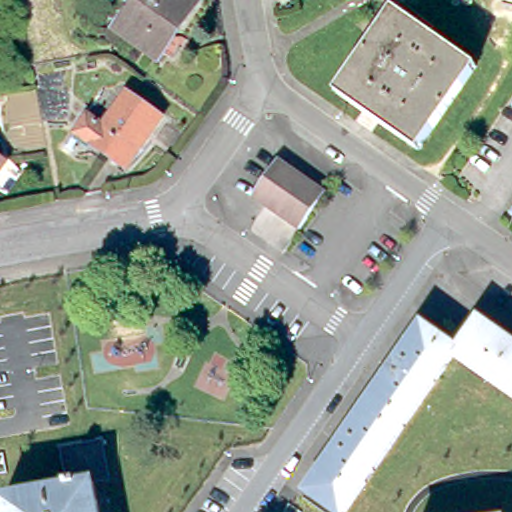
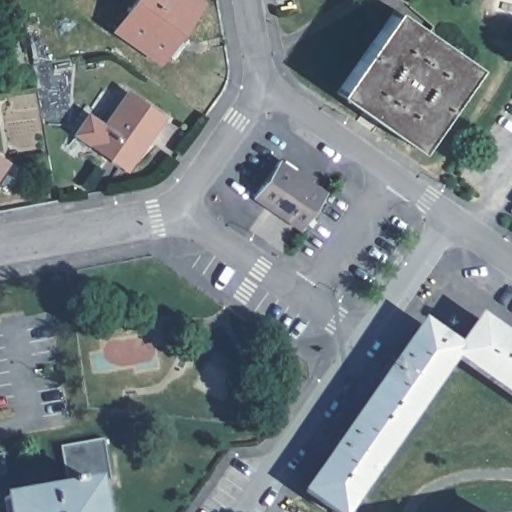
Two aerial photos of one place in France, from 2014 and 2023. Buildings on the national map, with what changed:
unchanged [(177,38),(166,54),(157,48),(155,53),(115,24),(131,0),(190,0),(168,32),(177,38)]
unchanged [(394,10),(478,67),(420,151),(337,93),(394,10)]
unchanged [(161,111),(125,164),(77,129),(88,111),(105,123),(128,89),(161,111)]
unchanged [(279,161),(326,193),(302,228),(255,198),(279,161)]
unchanged [(3,164),(0,169),(0,162),(3,164)]
unchanged [(512,392),(455,352),(344,511),(309,486),(422,321),(458,345),(480,315),(512,338),(512,392)]
unchanged [(63,494),(55,452),(98,445),(107,485),(88,489),(93,512),(0,512),(0,505),(63,494)]

